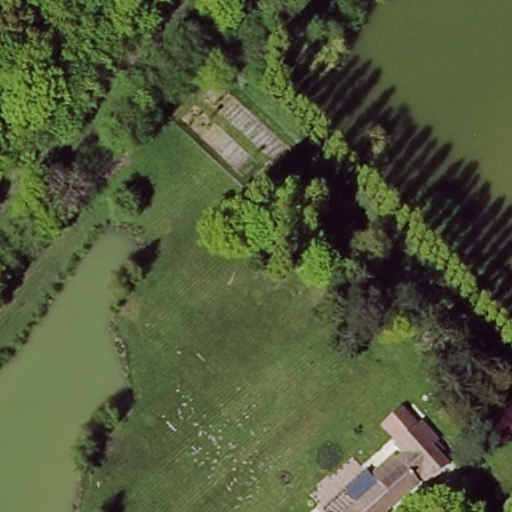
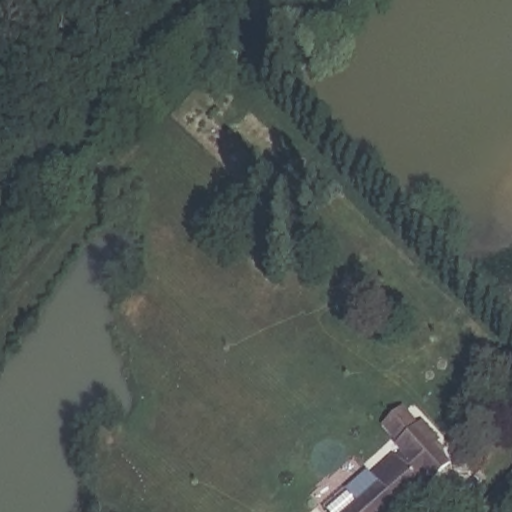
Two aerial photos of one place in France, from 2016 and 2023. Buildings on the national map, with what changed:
unchanged [(378,486),(370,476),(404,447),(439,486),(426,496),(418,488),(390,512),(350,512),(378,486)]

